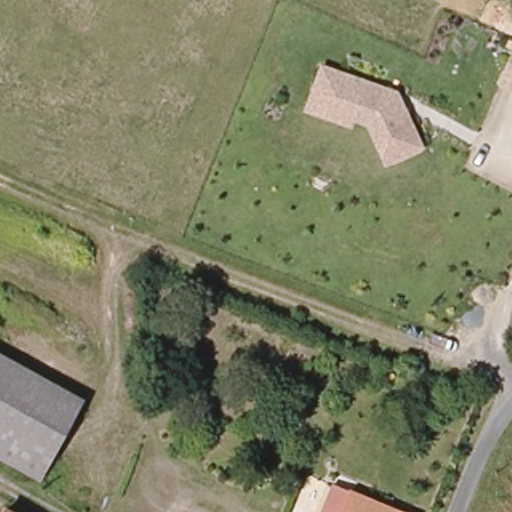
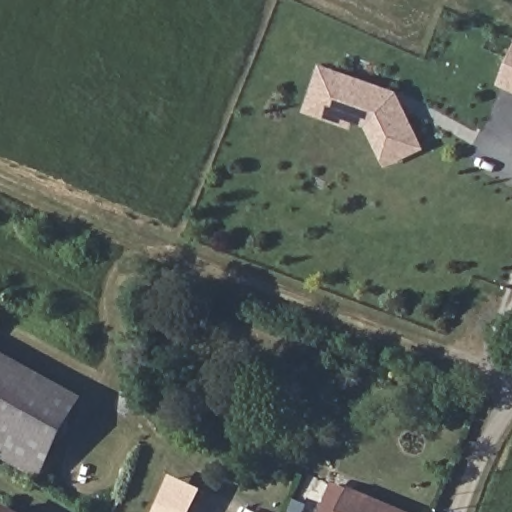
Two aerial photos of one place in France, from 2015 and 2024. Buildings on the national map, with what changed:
unchanged [(397,97),(401,106),(406,104),(423,144),(390,160),(372,120),(356,114),(353,121),(312,105),(327,62),(340,67),(400,89),(397,97)]
unchanged [(512,89),(503,85),(512,64),(512,89)]
unchanged [(84,417),(49,487),(0,462),(0,356),(90,402),(84,417)]
new [(192,512),(156,512),(171,477),(204,492),(192,512)]
unchanged [(325,507),(335,489),(360,502),(381,512),(323,512),(325,507)]
unchanged [(1,511),(3,512),(0,512),(1,511)]

